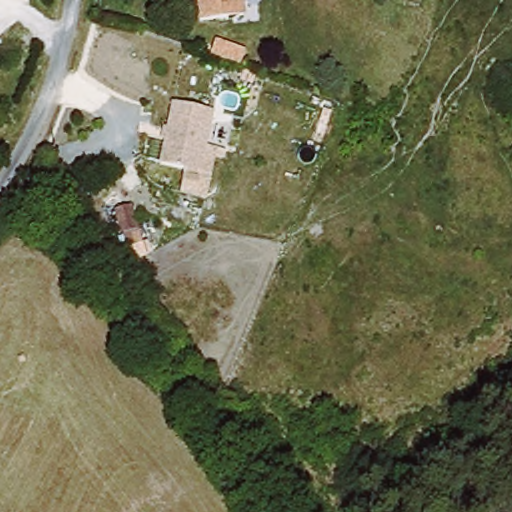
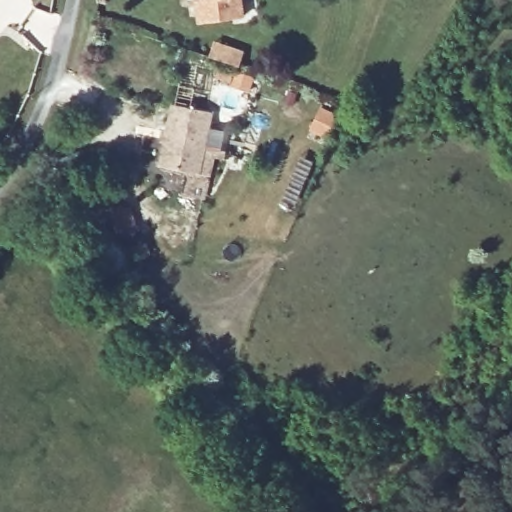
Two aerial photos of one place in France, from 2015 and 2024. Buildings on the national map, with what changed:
unchanged [(246,20),(202,27),(199,8),(203,6),(201,0),(242,0),(246,20)]
unchanged [(199,170),(160,163),(172,105),(210,112),(199,170)]

